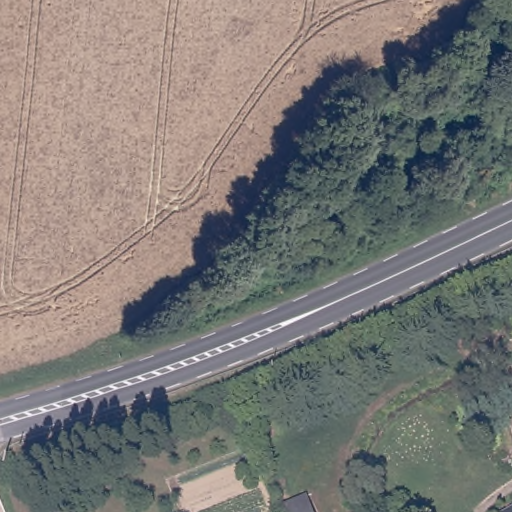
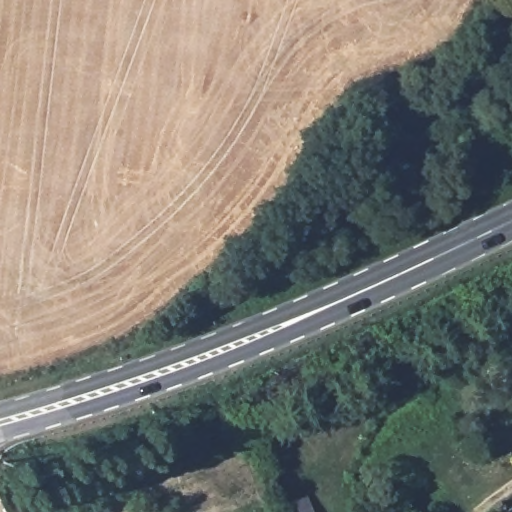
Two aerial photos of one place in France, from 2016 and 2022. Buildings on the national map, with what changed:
unchanged [(305,493),(312,512),(285,512),(282,503),(305,493)]
unchanged [(512,510),(512,512),(508,512),(512,510)]

